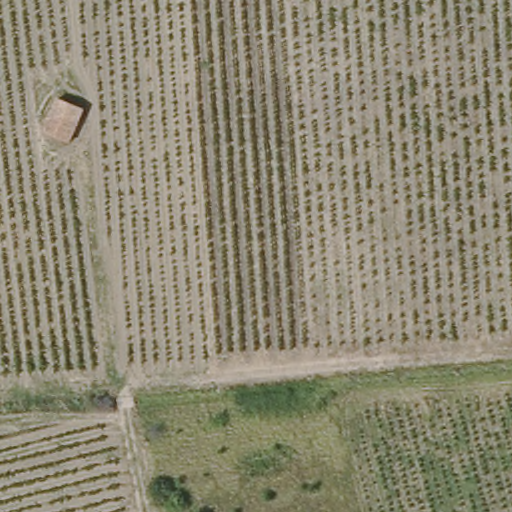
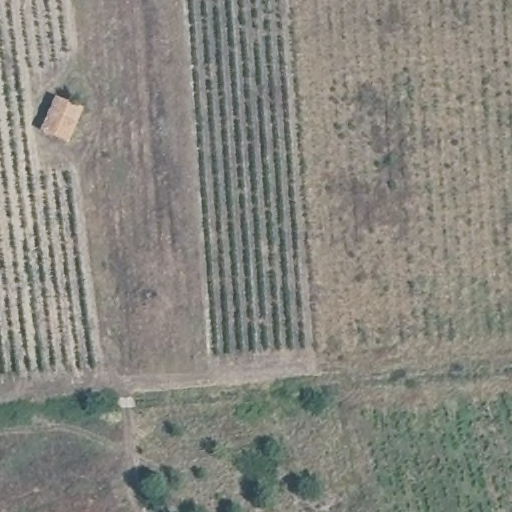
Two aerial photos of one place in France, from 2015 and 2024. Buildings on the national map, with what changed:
unchanged [(74,145),(51,136),(48,130),(62,98),(81,105),(88,109),(85,118),(74,145)]

